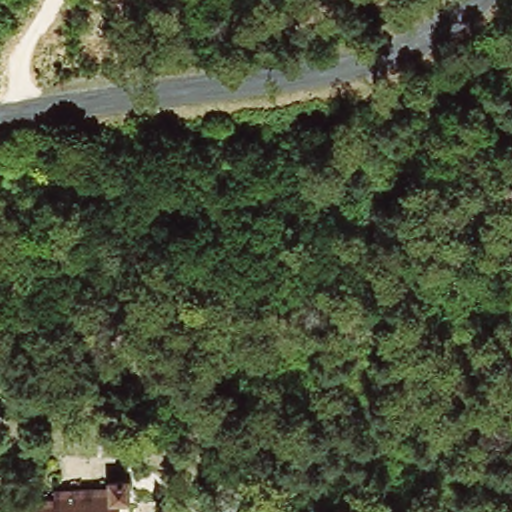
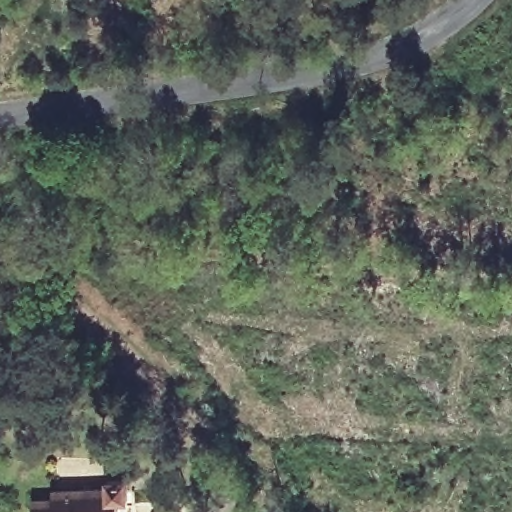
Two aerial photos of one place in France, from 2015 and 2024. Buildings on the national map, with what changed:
unchanged [(114,482),(132,482),(132,503),(127,502),(127,512),(37,512),(37,497),(57,497),(57,490),(112,488),(114,482)]

